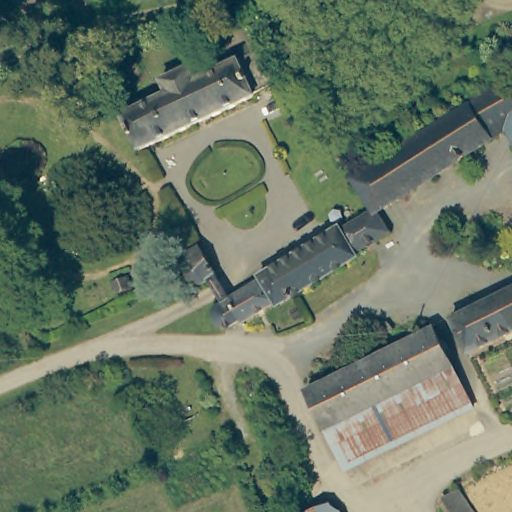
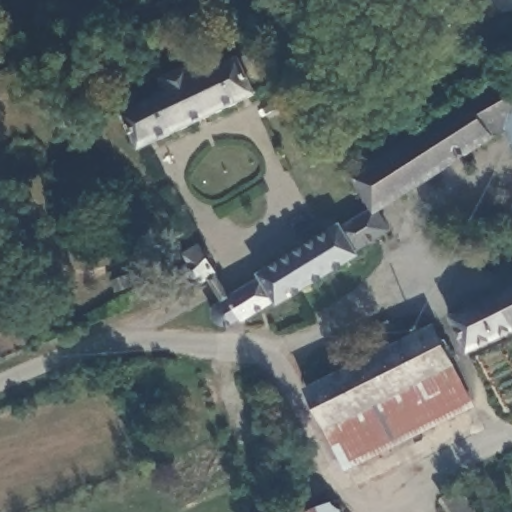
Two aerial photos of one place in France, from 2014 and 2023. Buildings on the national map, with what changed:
unchanged [(128,140),(125,143),(121,146),(114,146),(107,143),(104,137),(105,128),(111,122),(119,121),(117,115),(163,95),(156,79),(187,66),(190,80),(234,60),(232,54),(230,50),(243,44),(248,54),(260,49),(282,82),(135,150),(128,140)]
unchanged [(372,212),(354,180),(359,177),(434,129),(476,101),(512,79),(512,142),(506,125),(374,210),(372,212)]
unchanged [(389,232),(353,254),(342,231),(372,212),(374,210),(389,232)]
unchanged [(260,276),(339,228),(342,231),(353,254),(356,258),(329,274),(279,305),(277,302),(263,280),(260,276)]
unchanged [(210,280),(200,286),(198,281),(187,287),(180,285),(175,282),(173,276),(174,270),(178,264),(174,255),(187,247),(210,280)]
unchanged [(243,322),(242,320),(222,330),(215,327),(212,321),(213,313),(220,308),(218,301),(222,298),(226,296),(229,301),(263,280),(277,302),(243,322)]
unchanged [(489,343),(471,353),(454,318),(512,288),(512,331),(489,343)]
unchanged [(433,327),(473,400),(347,465),(309,390),(433,327)]
unchanged [(512,460),(512,495),(481,510),(482,512),(453,512),(443,496),(466,482),(512,460)]
unchanged [(340,512),(307,512),(335,501),(340,512)]

